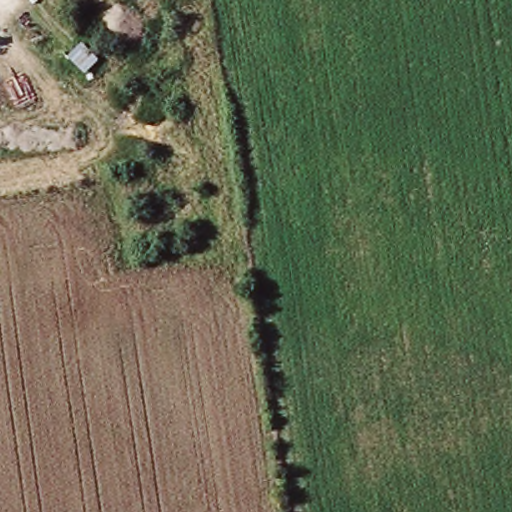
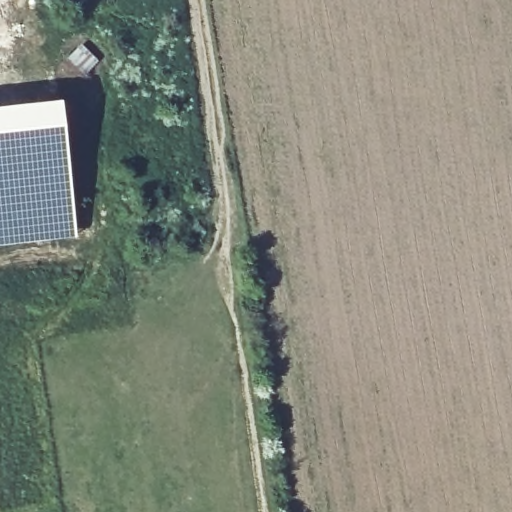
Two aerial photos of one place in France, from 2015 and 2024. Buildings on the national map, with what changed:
new [(79,236),(0,244),(0,106),(65,99),(79,236)]

